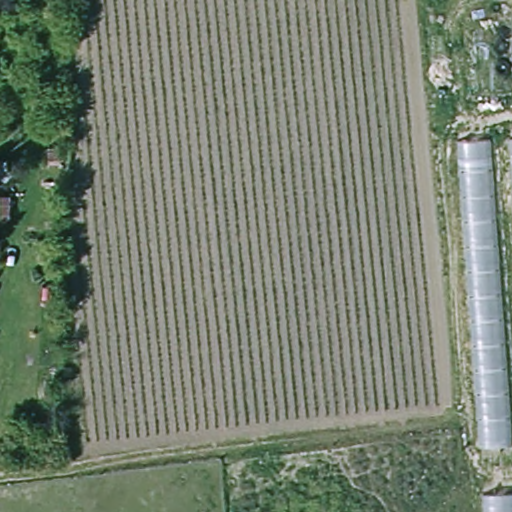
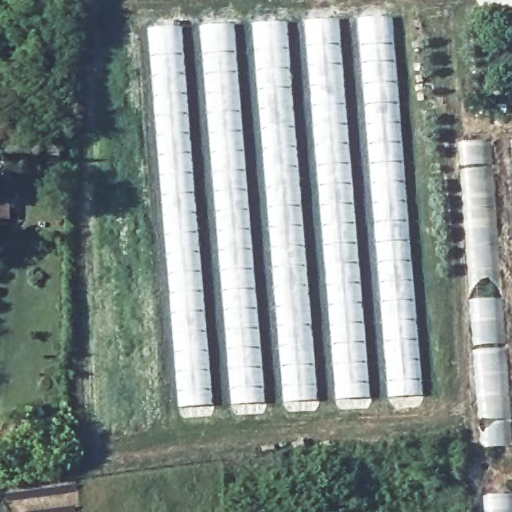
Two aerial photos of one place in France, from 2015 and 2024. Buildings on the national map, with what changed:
new [(360,22),(394,20),(423,398),(390,398),(360,22)]
new [(339,402),(307,23),(342,22),(372,400),(339,402)]
new [(255,26),(289,25),(320,402),(285,404),(255,26)]
new [(235,406),(202,28),(235,26),(268,405),(235,406)]
new [(151,31),(184,29),(213,407),(180,409),(151,31)]
unchanged [(461,143),(512,140),(512,445),(482,446),(461,143)]
unchanged [(512,498),(512,512),(485,512),(484,499),(512,498)]

